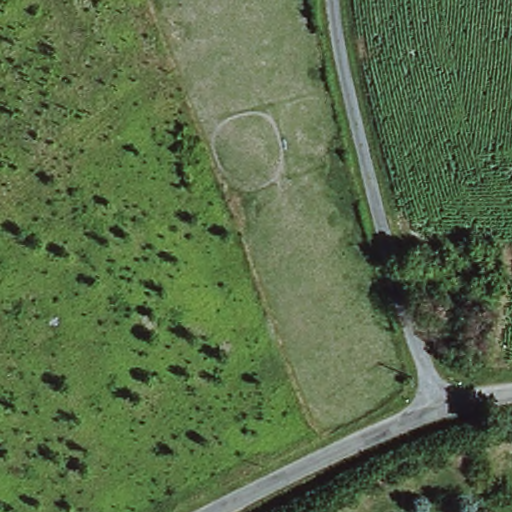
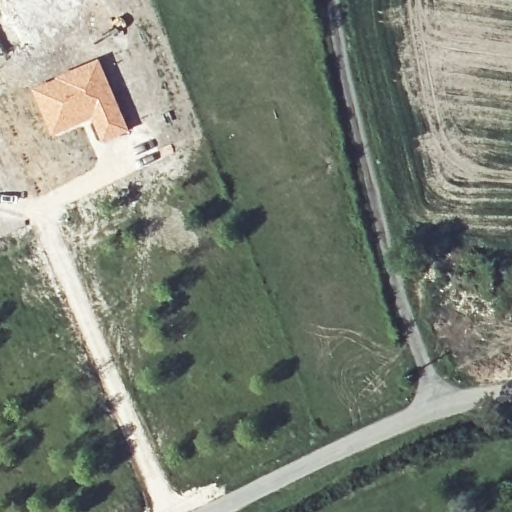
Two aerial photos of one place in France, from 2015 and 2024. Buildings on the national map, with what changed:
new [(98,58),(130,132),(100,143),(90,120),(51,136),(30,86),(98,58)]

